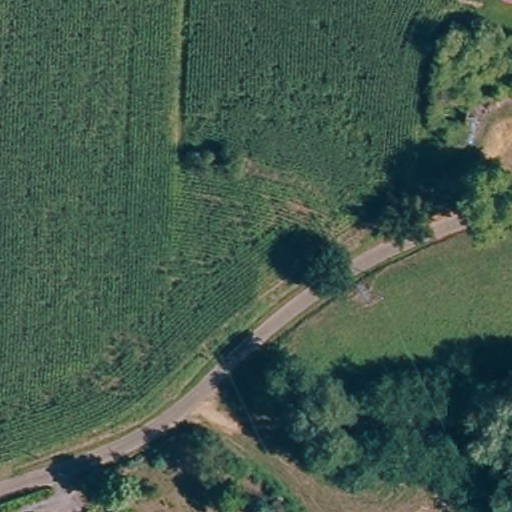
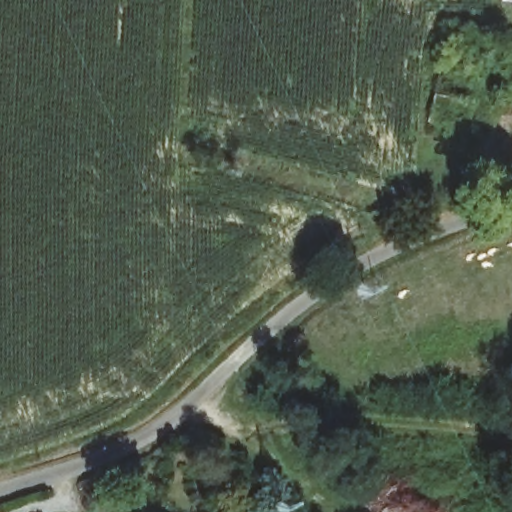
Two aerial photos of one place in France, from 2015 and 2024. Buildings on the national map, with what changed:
unchanged [(495,0),(512,0),(512,3),(495,0)]

